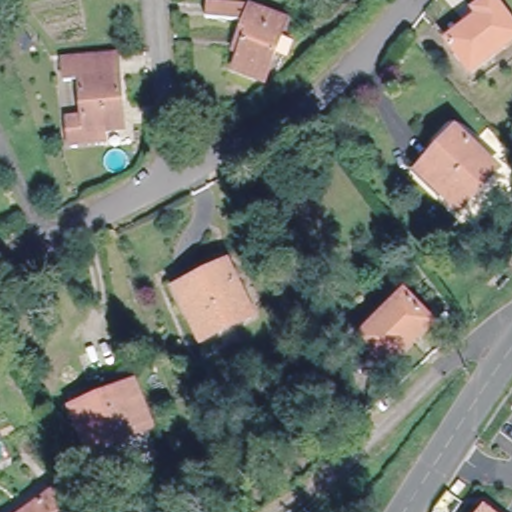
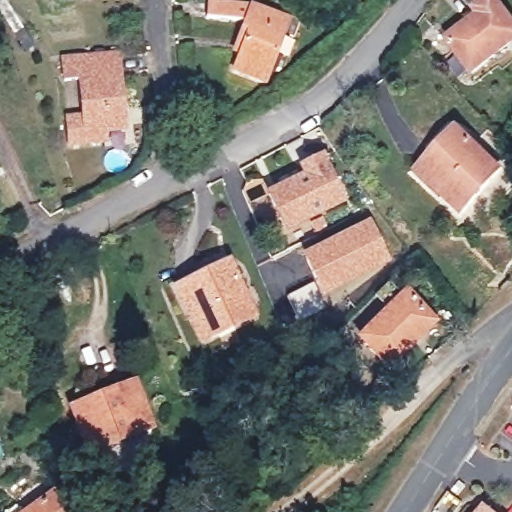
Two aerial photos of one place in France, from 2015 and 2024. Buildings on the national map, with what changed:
unchanged [(447,40),(480,14),(475,8),(485,0),(493,0),(512,25),(512,37),(470,70),(447,40)]
unchanged [(269,79),(240,67),(245,50),(240,49),(250,19),(209,16),(210,2),(252,5),(291,21),(269,79)]
unchanged [(126,122),(108,124),(109,137),(76,140),(73,111),(89,109),(87,74),(69,76),(68,54),(120,50),(126,122)]
unchanged [(461,208),(421,170),(456,131),(497,169),(461,208)]
new [(302,175),(297,165),(325,152),(348,202),(282,231),(265,192),(302,175)]
new [(300,254),(369,219),(392,262),(323,298),(323,300),(322,300),(325,306),(299,320),(286,296),(314,282),(300,254)]
unchanged [(203,341),(177,292),(228,267),(252,316),(203,341)]
unchanged [(390,368),(363,341),(407,297),(434,325),(390,368)]
unchanged [(90,453),(73,411),(133,386),(149,425),(150,427),(141,431),(90,453)]
unchanged [(64,512),(30,512),(53,496),(58,503),(64,512)]

